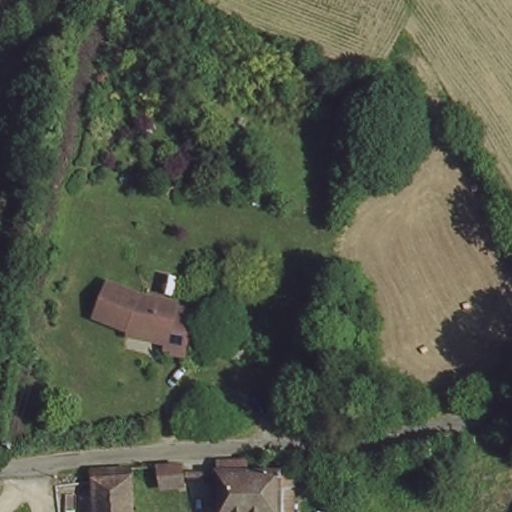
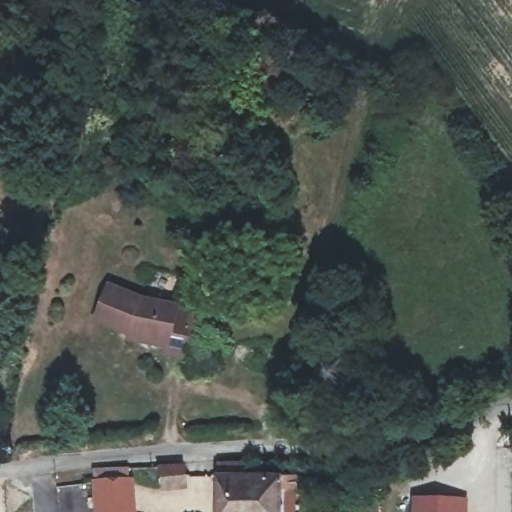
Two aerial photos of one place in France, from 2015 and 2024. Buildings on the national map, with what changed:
unchanged [(148,290),(182,296),(180,303),(198,306),(188,350),(170,345),(173,332),(131,324),(100,310),(114,277),(148,290)]
unchanged [(283,512),(217,512),(216,461),(248,461),(247,476),(300,479),(300,488),(285,488),(283,512)]
unchanged [(129,512),(94,512),(90,473),(127,474),(129,512)]
new [(411,495),(467,497),(467,512),(410,512),(411,495)]

